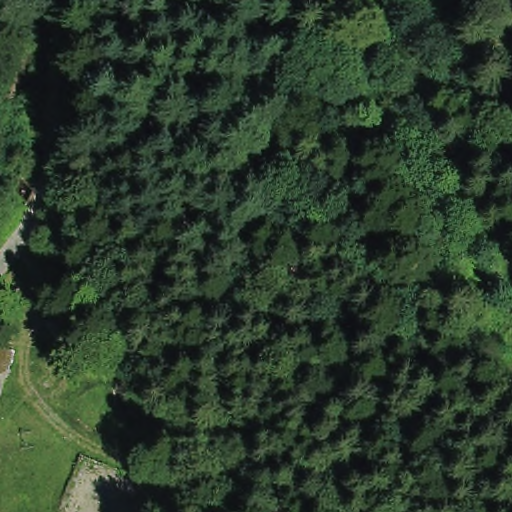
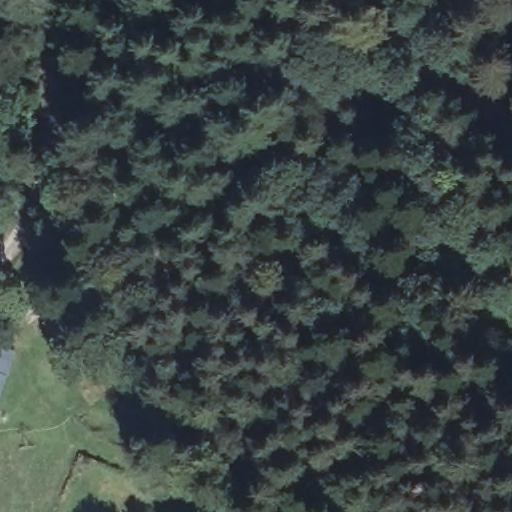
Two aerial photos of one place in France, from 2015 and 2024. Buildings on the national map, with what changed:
unchanged [(0,344),(19,351),(10,375),(3,400),(0,398),(0,344)]

